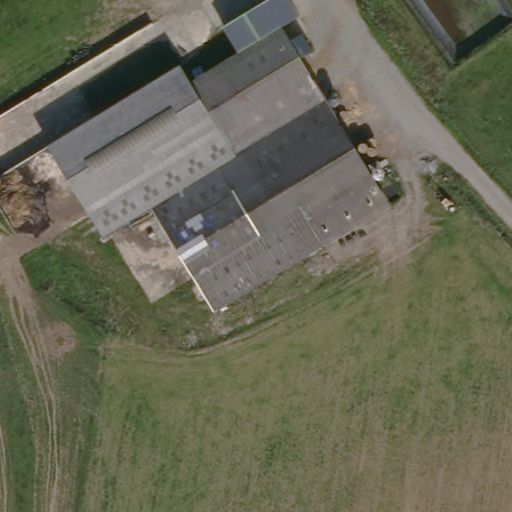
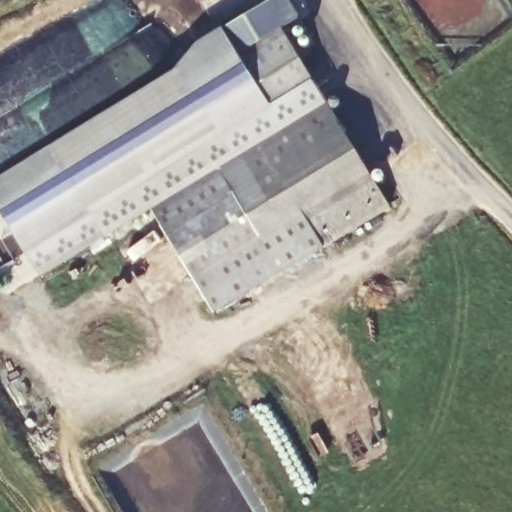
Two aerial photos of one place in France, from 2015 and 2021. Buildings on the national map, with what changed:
unchanged [(219,30),(260,5),(261,6),(271,0),(278,0),(292,21),(276,34),(236,57),(219,30)]
unchanged [(144,209),(207,171),(165,101),(194,84),(236,57),(276,34),(352,155),(179,266),(144,209)]
unchanged [(105,234),(52,147),(182,65),(194,84),(165,101),(207,171),(144,209),(105,234)]
new [(107,236),(42,275),(0,207),(0,176),(51,145),(52,147),(105,234),(107,236)]
unchanged [(352,155),(362,170),(187,279),(179,266),(352,155)]
unchanged [(362,170),(386,209),(209,316),(187,279),(362,170)]

